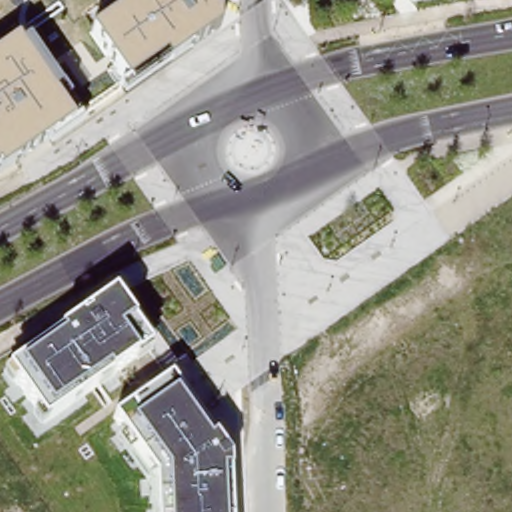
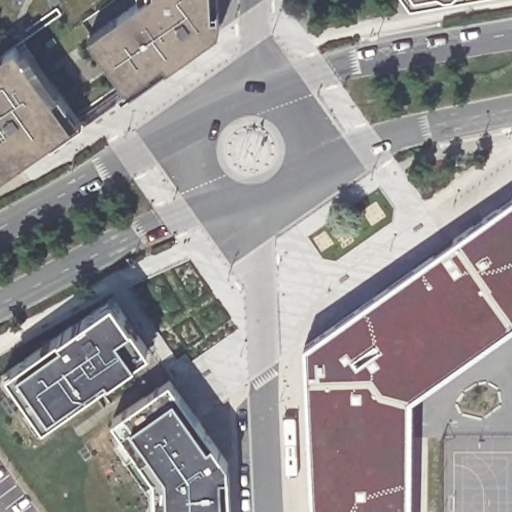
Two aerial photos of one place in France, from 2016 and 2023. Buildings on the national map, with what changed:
unchanged [(212,0),(213,12),(219,12),(219,29),(169,65),(164,59),(126,87),(89,32),(136,0),(212,0)]
unchanged [(410,0),(426,0),(412,2),(410,0)]
unchanged [(20,48),(28,44),(61,91),(53,97),(73,124),(3,172),(0,170),(0,54),(16,42),(20,48)]
new [(512,201),(512,322),(409,394),(408,512),(315,512),(309,347),(512,201)]
unchanged [(151,348),(44,424),(7,370),(113,295),(151,348)]
unchanged [(171,377),(229,460),(232,512),(157,512),(156,476),(113,418),(171,377)]

